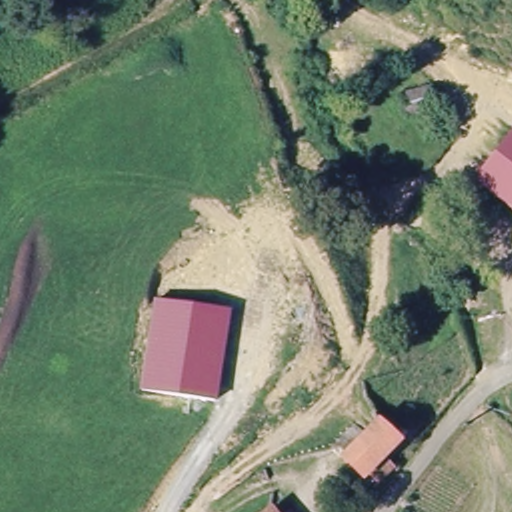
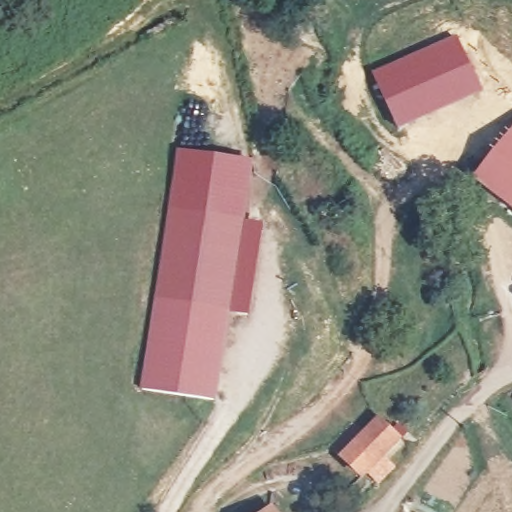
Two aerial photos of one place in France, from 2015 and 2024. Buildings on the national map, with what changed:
new [(482,90),(398,130),(371,72),(455,32),(482,90)]
demolished [(392,101),(417,90),(426,111),(402,121),(392,101)]
unchanged [(512,133),(512,209),(476,181),(512,133)]
new [(255,160),(245,220),(168,208),(177,148),(255,160)]
new [(245,220),(216,402),(140,388),(168,208),(245,220)]
new [(248,316),(231,312),(245,220),(264,223),(248,316)]
unchanged [(383,488),(374,479),(368,485),(346,461),(343,457),(336,450),(357,430),(367,441),(385,425),(407,446),(390,463),(398,473),(383,488)]
unchanged [(279,507),(282,512),(273,512),(279,507)]

